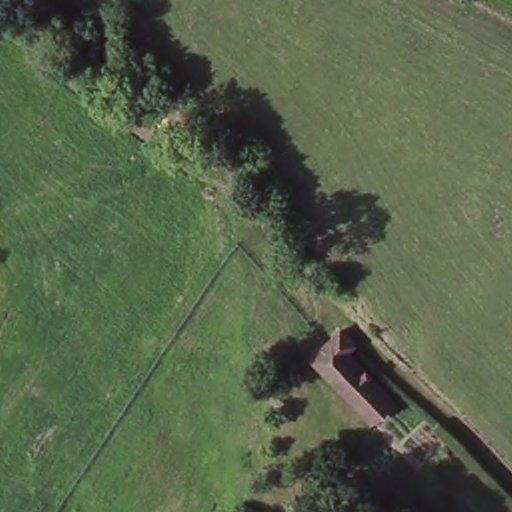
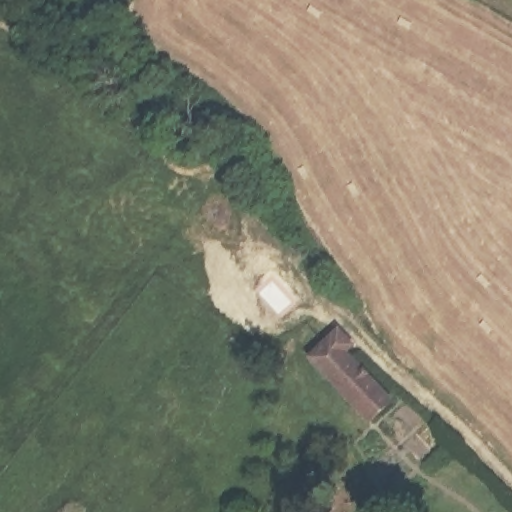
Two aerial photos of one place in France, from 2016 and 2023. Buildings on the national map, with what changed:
unchanged [(345,344),(337,352),(386,399),(366,418),(306,358),(331,331),(345,344)]

